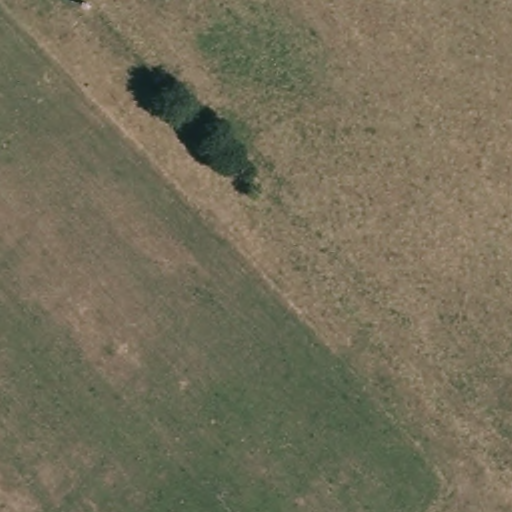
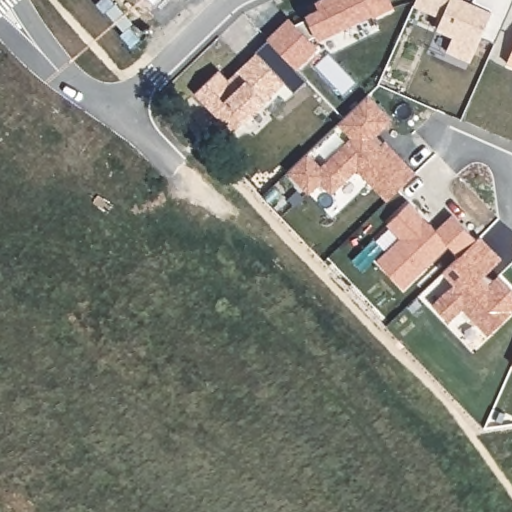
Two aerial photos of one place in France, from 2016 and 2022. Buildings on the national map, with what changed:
new [(267,38),(288,18),(295,23),(307,18),(306,14),(318,7),(315,0),(388,0),(392,8),(372,18),(371,12),(318,38),(308,40),(317,49),(295,67),(267,38)]
new [(495,41),(480,35),(470,61),(446,51),(451,35),(435,29),(441,18),(412,5),(414,0),(511,0),(495,41)]
new [(219,70),(229,79),(255,52),(283,82),(263,99),(245,120),(232,131),(194,93),(219,70)]
new [(507,64),(512,53),(512,67),(507,64)]
new [(388,202),(376,189),(359,171),(333,195),(322,183),(310,194),(290,171),(309,153),(322,167),(353,138),(340,124),(371,96),(395,121),(376,139),(382,146),(387,142),(406,161),(418,175),(388,202)]
new [(401,237),(388,223),(411,202),(425,218),(423,220),(427,224),(432,224),(437,230),(453,215),(477,241),(460,256),(450,245),(403,288),(377,260),(401,237)]
new [(454,284),(443,272),(460,256),(477,241),(480,238),(502,260),(482,278),(489,286),(499,277),(512,291),(512,314),(487,336),(462,309),(448,322),(432,304),(454,284)]

